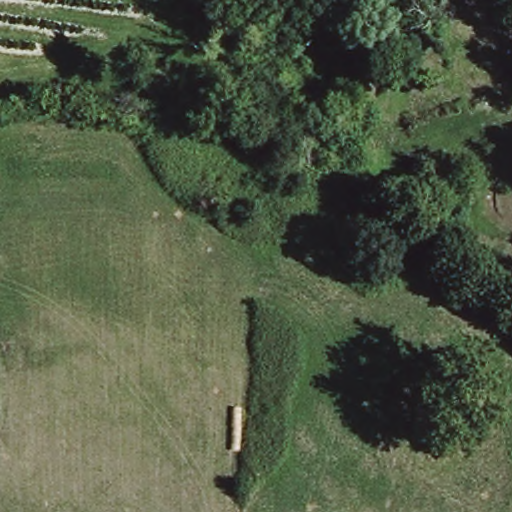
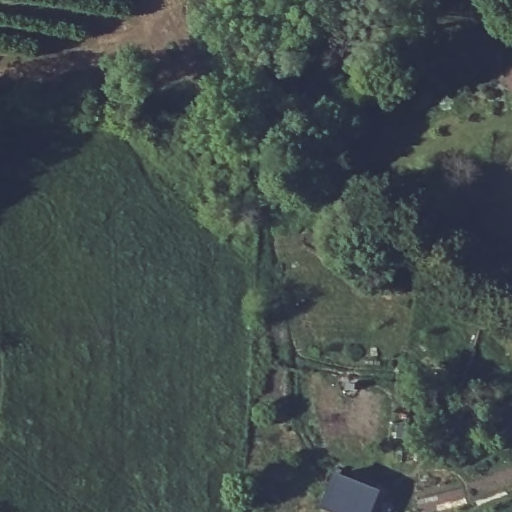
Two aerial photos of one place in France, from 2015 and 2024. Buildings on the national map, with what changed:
new [(380,491),(372,512),(331,512),(321,508),(335,473),(380,491)]

